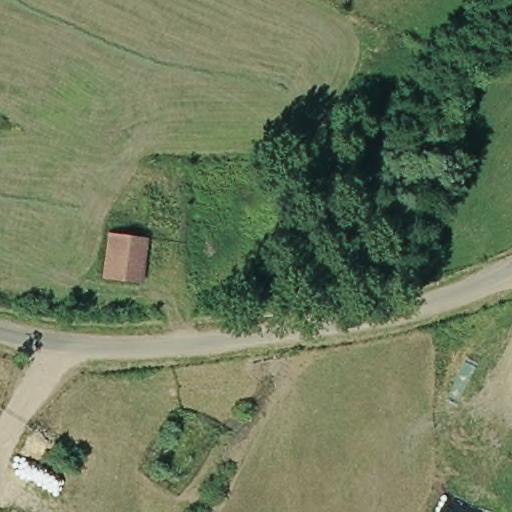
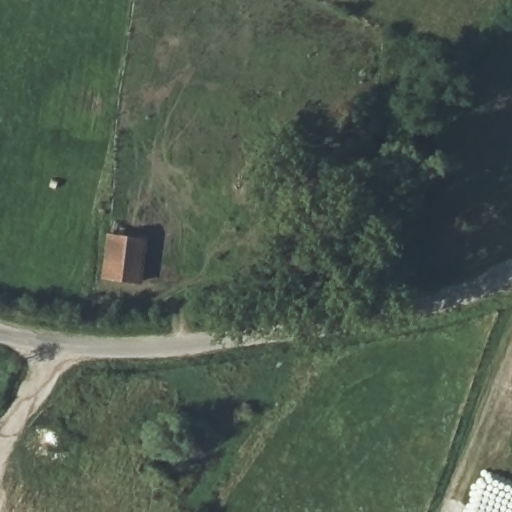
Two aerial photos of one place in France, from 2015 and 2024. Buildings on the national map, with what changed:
unchanged [(105,233),(147,238),(142,283),(100,280),(105,233)]

